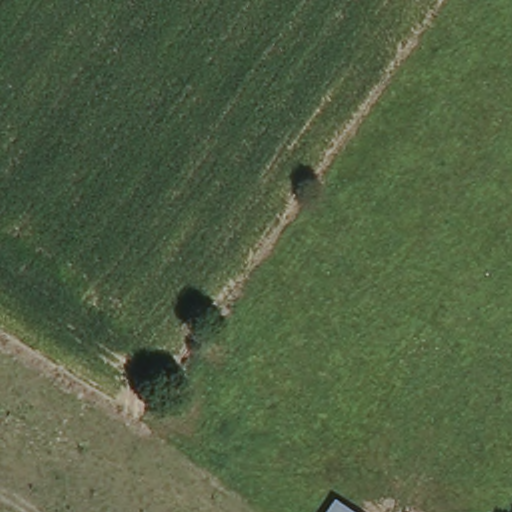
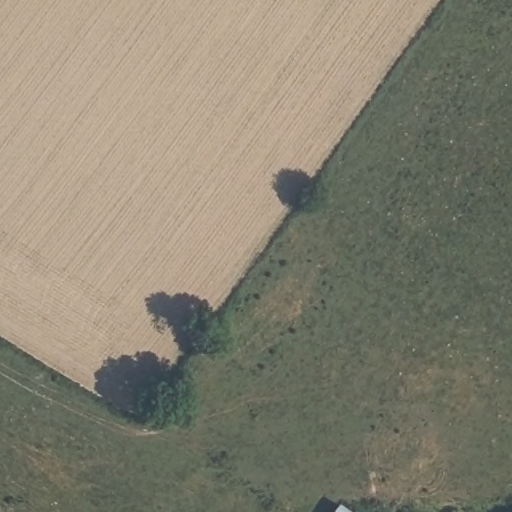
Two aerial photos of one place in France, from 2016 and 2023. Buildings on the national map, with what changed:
unchanged [(338,502),(351,512),(331,512),(338,502)]

